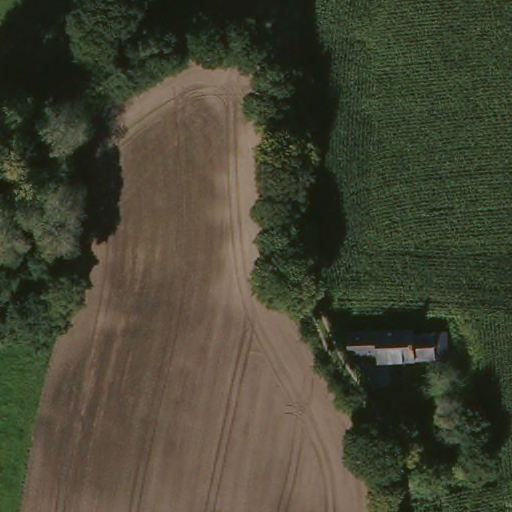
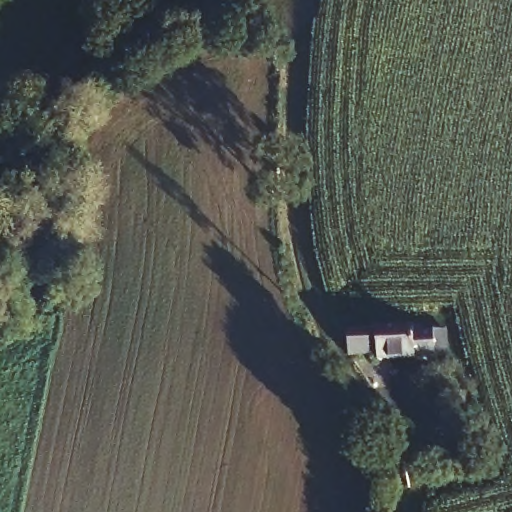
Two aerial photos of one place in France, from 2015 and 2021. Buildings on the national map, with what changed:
unchanged [(381,362),(380,353),(351,354),(349,329),(416,326),(416,334),(448,332),(449,357),(416,358),(381,362)]

